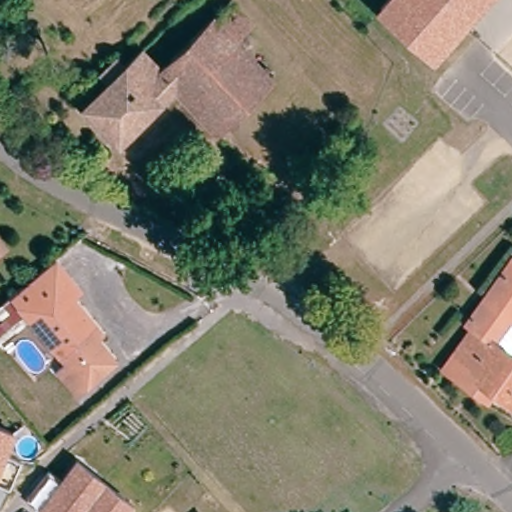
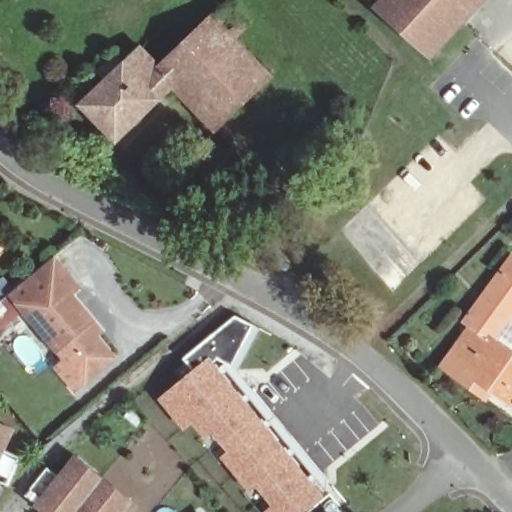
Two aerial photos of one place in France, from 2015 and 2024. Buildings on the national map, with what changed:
unchanged [(217,126),(173,85),(118,137),(83,104),(110,77),(105,72),(120,57),(125,63),(141,47),(163,70),(218,16),(234,0),(255,22),(239,37),(273,72),(217,126)]
unchanged [(478,0),(428,56),(376,10),(384,0),(478,0)]
unchanged [(447,373),(476,331),(470,326),(512,263),(512,322),(497,345),(512,355),(512,403),(497,393),(491,403),(447,373)]
unchanged [(68,382),(78,375),(37,325),(21,306),(57,276),(58,275),(74,293),(84,305),(79,310),(101,335),(109,345),(103,350),(115,364),(113,378),(95,395),(85,402),(68,382)]
new [(264,511),(272,505),(256,486),(250,492),(221,458),(228,450),(213,432),(205,440),(192,423),(183,431),(159,398),(195,368),(185,357),(235,316),(253,325),(232,365),(217,357),(213,361),(258,416),(324,496),(306,512),(265,512),(264,511)]
unchanged [(3,446),(20,454),(8,482),(0,478),(0,421),(12,426),(3,446)]
unchanged [(24,490),(47,463),(59,474),(76,455),(131,501),(122,512),(50,512),(24,490)]
unchanged [(199,510),(200,512),(197,512),(199,510)]

